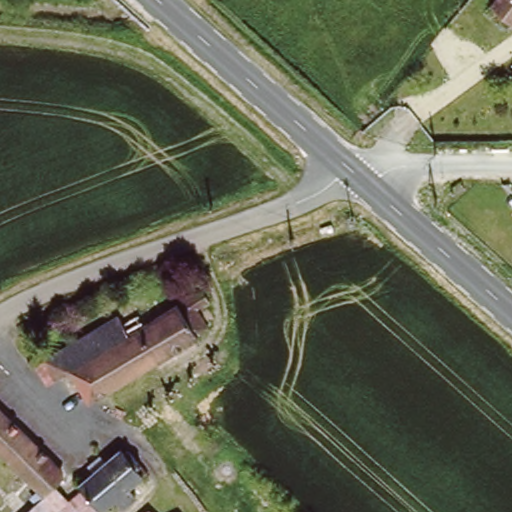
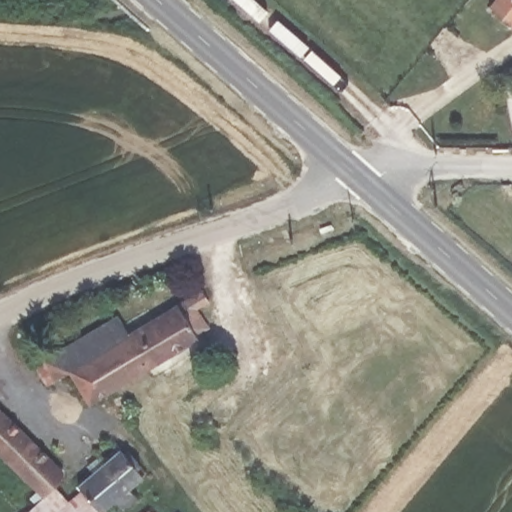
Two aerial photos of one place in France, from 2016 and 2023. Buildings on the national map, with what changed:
unchanged [(494,0),(512,0),(512,26),(489,6),(494,0)]
unchanged [(112,313),(116,319),(151,301),(154,305),(172,294),(199,334),(93,402),(70,372),(48,386),(33,364),(112,313)]
unchanged [(38,493),(0,458),(0,404),(72,473),(58,486),(81,512),(37,512),(46,502),(38,493)]
unchanged [(129,445),(152,473),(133,490),(141,498),(129,510),(120,501),(107,512),(103,512),(84,487),(129,445)]

